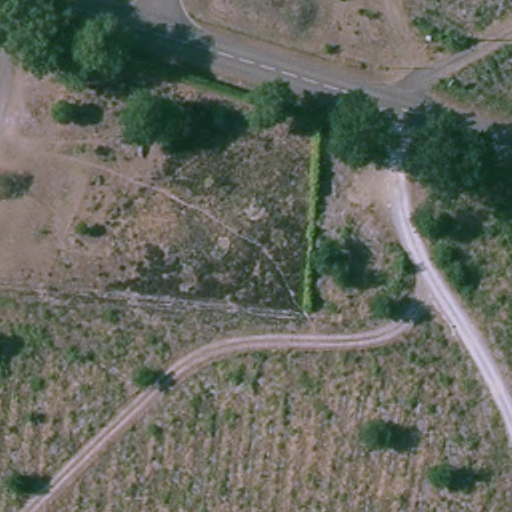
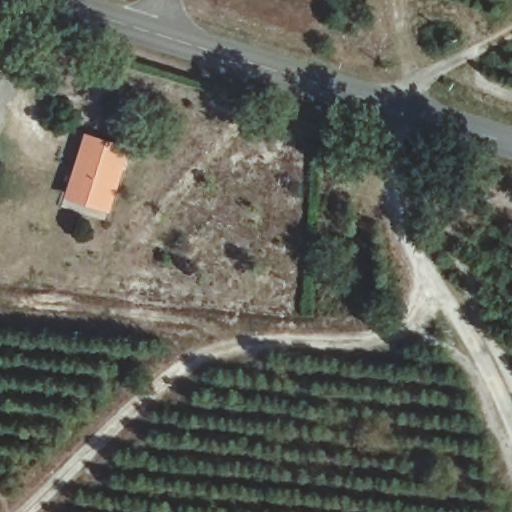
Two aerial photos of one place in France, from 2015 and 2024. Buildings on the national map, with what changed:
new [(130,147),(110,212),(65,199),(86,134),(130,147)]

